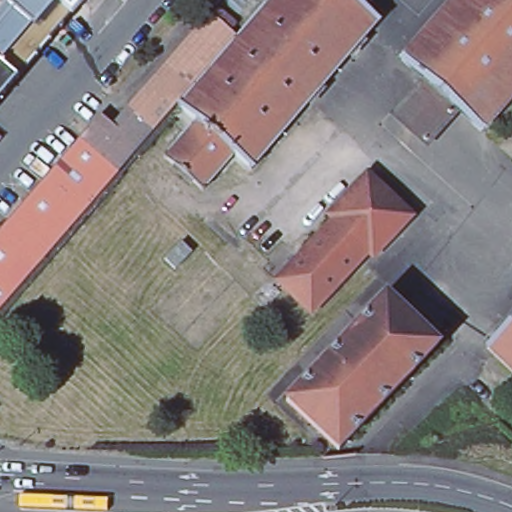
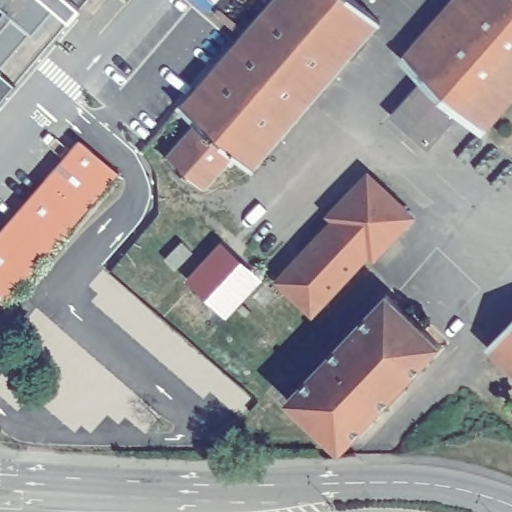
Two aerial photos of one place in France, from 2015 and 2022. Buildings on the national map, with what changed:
unchanged [(88,0),(0,103),(0,0),(88,0)]
unchanged [(381,25),(256,169),(238,153),(207,189),(169,156),(201,120),(186,109),(281,0),(362,0),(387,21),(381,25)]
unchanged [(465,112),(433,148),(400,119),(433,82),(409,61),(463,0),(512,0),(512,107),(489,133),(465,112)]
unchanged [(240,38),(159,130),(133,109),(215,16),(240,38)]
unchanged [(123,170),(85,139),(105,116),(118,126),(133,109),(159,130),(123,170)]
unchanged [(0,312),(0,233),(85,139),(123,170),(0,312)]
unchanged [(419,216),(379,258),(374,254),(318,313),(283,280),(339,220),(335,216),(374,174),(419,216)]
new [(264,282),(226,323),(186,284),(221,244),(264,282)]
unchanged [(343,447),(299,406),(291,399),(313,377),(394,292),(444,341),(393,395),(383,405),(343,447)]
unchanged [(512,324),(512,370),(489,349),(512,324)]

